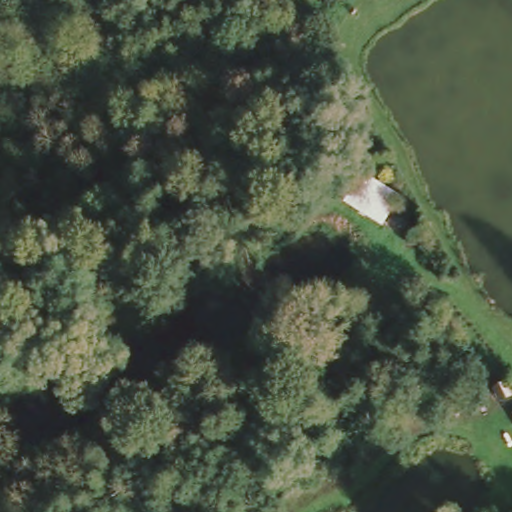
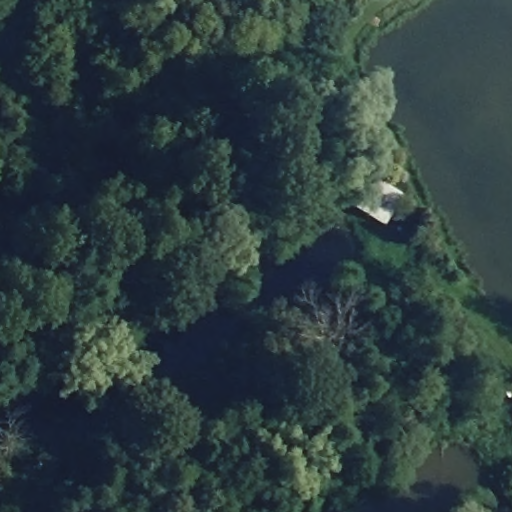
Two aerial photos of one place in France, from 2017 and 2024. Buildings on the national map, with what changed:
unchanged [(343,201),(360,167),(405,187),(387,223),(343,201)]

